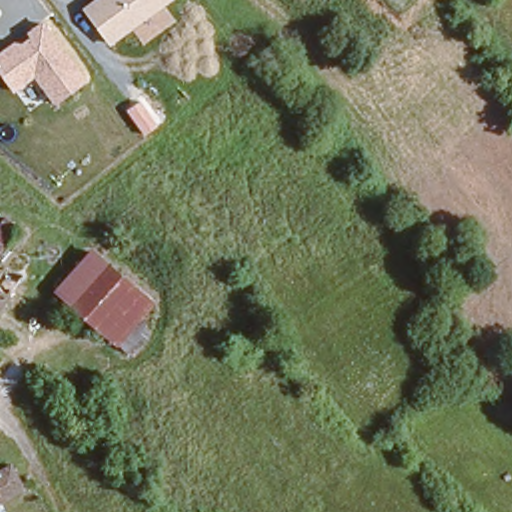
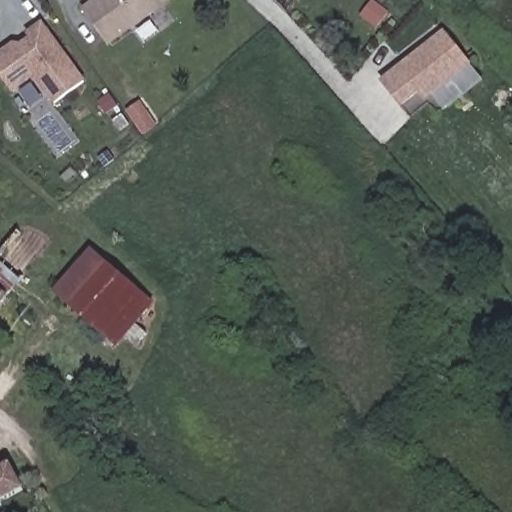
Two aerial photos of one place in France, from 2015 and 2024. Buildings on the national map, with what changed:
unchanged [(109,44),(82,8),(93,0),(173,0),(109,44)]
unchanged [(35,79),(14,93),(0,72),(0,54),(43,23),(87,81),(55,104),(35,79)]
new [(401,106),(381,80),(444,30),(471,63),(424,100),(418,93),(401,106)]
unchanged [(37,262),(0,304),(0,242),(6,235),(37,262)]
unchanged [(150,301),(116,336),(53,287),(90,247),(150,301)]
unchanged [(0,486),(0,442),(1,441),(20,471),(0,486)]

